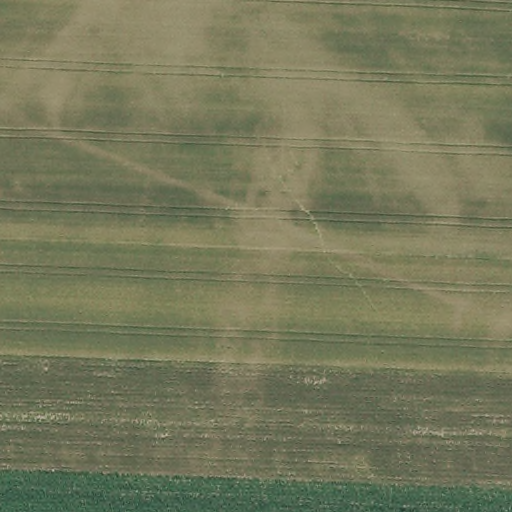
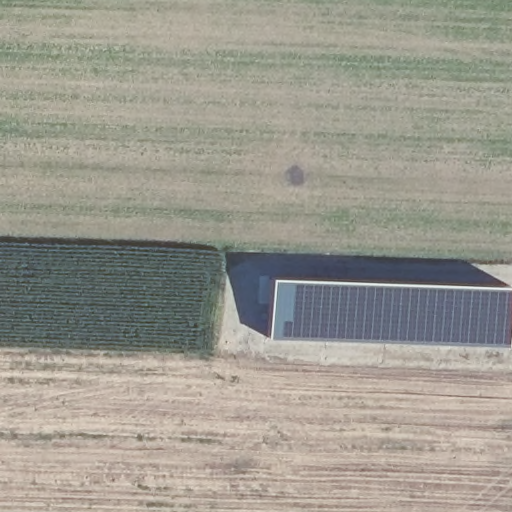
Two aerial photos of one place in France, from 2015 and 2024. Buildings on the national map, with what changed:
new [(512,285),(508,348),(266,337),(271,277),(512,285)]

